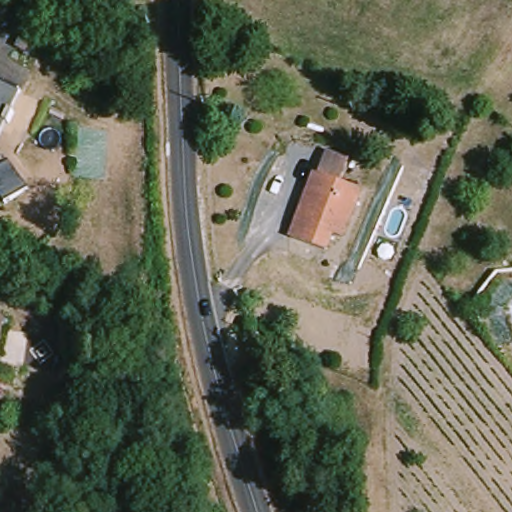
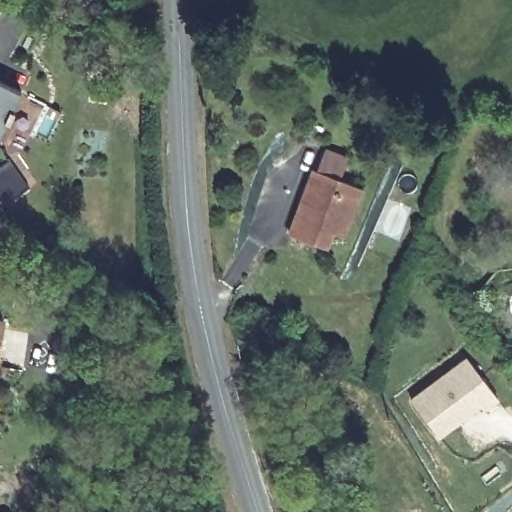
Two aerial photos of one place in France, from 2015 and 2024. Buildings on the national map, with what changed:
unchanged [(40,13),(11,0),(45,0),(40,13)]
unchanged [(22,97),(12,116),(15,118),(10,129),(7,127),(0,140),(0,86),(22,97)]
unchanged [(28,193),(5,209),(0,201),(0,152),(28,193)]
unchanged [(334,236),(328,249),(291,236),(314,178),(323,157),(348,164),(339,187),(362,195),(354,218),(346,240),(334,236)]
unchanged [(3,323),(0,340),(0,323),(3,323)]
new [(462,360),(492,400),(478,410),(475,406),(433,438),(406,403),(462,360)]

